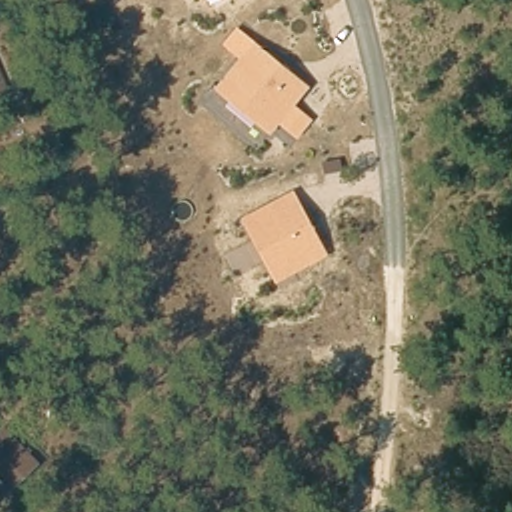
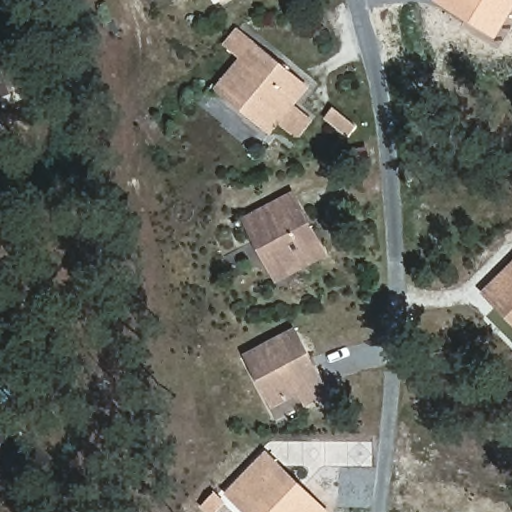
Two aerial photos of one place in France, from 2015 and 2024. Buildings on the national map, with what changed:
unchanged [(214,5),(211,0),(225,0),(223,2),(214,5)]
new [(430,0),(512,0),(512,15),(496,40),(430,0)]
unchanged [(297,107),(316,121),(298,142),(279,127),(270,137),(257,125),(252,129),(226,107),(231,100),(218,87),(240,60),(226,45),(238,30),(309,87),(297,107)]
unchanged [(0,97),(0,80),(6,95),(0,97)]
unchanged [(328,257),(277,286),(244,220),(296,192),(328,257)]
new [(512,265),(512,325),(482,292),(512,265)]
new [(330,395),(304,408),(299,396),(272,411),(246,354),(296,327),(330,395)]
unchanged [(7,486),(0,477),(0,425),(2,423),(34,461),(7,486)]
new [(328,512),(242,512),(224,496),(267,451),(328,512)]

